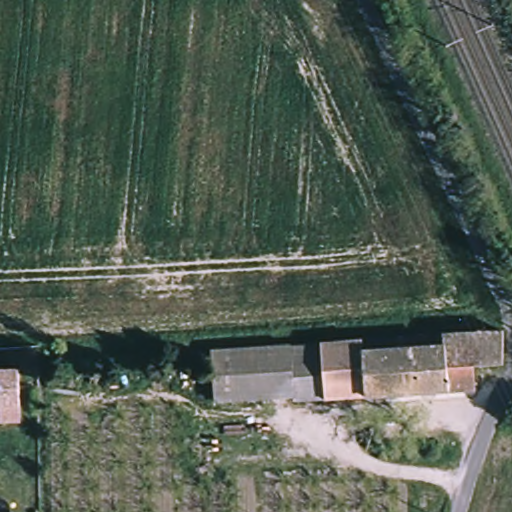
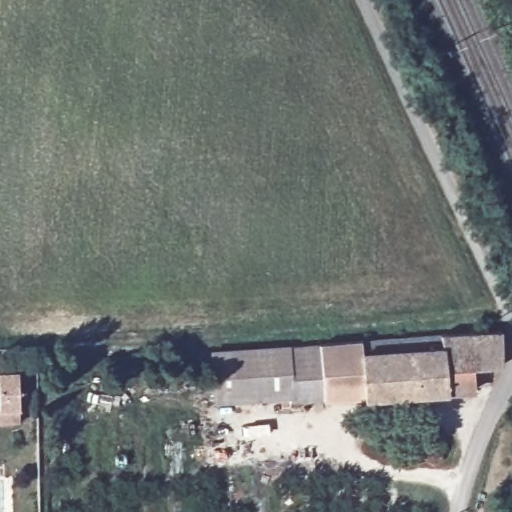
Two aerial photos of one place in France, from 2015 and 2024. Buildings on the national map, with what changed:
unchanged [(442,333),(502,331),(502,365),(472,366),(475,388),(361,397),(360,340),(442,333)]
unchanged [(361,397),(294,402),(293,397),(215,402),(213,361),(200,362),(200,352),(212,351),(360,340),(361,397)]
unchanged [(0,408),(0,371),(17,371),(18,407),(0,408)]

